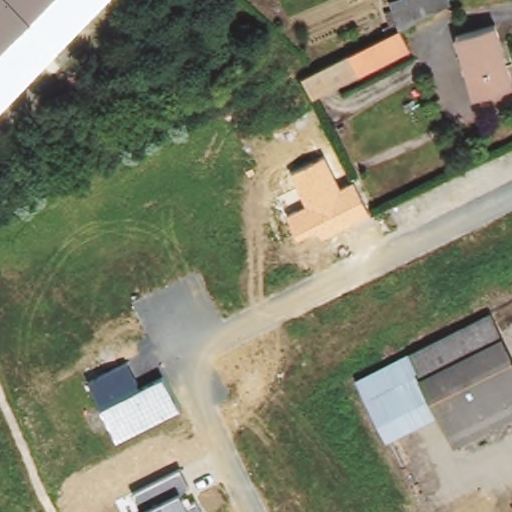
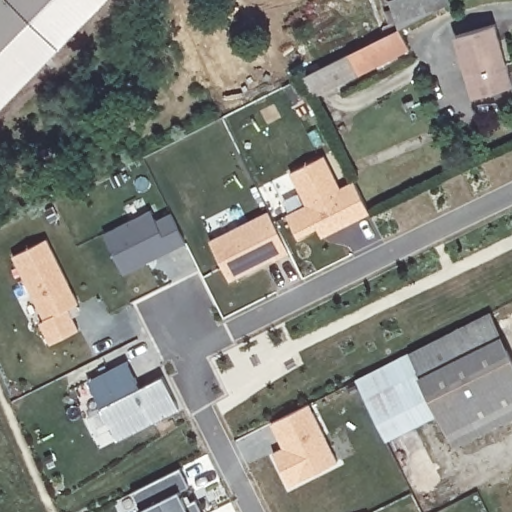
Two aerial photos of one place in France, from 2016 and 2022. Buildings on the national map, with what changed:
unchanged [(0,109),(0,1),(1,0),(12,0),(59,49),(0,109)]
unchanged [(109,0),(59,49),(12,0),(109,0)]
unchanged [(416,0),(455,0),(457,4),(406,29),(397,10),(416,0)]
unchanged [(512,73),(512,84),(473,95),(456,34),(497,21),(512,73)]
unchanged [(332,67),(357,55),(406,29),(417,49),(367,74),(365,70),(339,83),(332,67)]
unchanged [(286,215),(306,205),(291,171),(325,155),(340,189),(355,181),(370,216),(322,238),(318,228),(297,239),(286,215)]
new [(124,275),(104,235),(151,211),(156,221),(171,214),(186,244),(169,252),(147,263),(124,275)]
new [(229,281),(209,241),(267,211),(287,254),(229,281)]
new [(72,317),(79,330),(51,344),(40,322),(45,320),(13,256),(47,240),(78,303),(77,304),(82,313),(72,317)]
unchanged [(512,353),(512,420),(458,446),(443,415),(433,395),(414,356),(412,353),(427,346),(492,313),(512,353)]
unchanged [(386,441),(356,380),(412,353),(414,356),(433,395),(443,415),(386,441)]
unchanged [(101,407),(87,383),(129,362),(141,388),(163,376),(180,410),(117,440),(101,407)]
new [(336,461),(290,485),(272,453),(282,448),(271,423),(309,403),(336,461)]
unchanged [(140,510),(132,494),(180,470),(189,488),(181,493),(187,507),(196,502),(201,512),(141,512),(140,510)]

